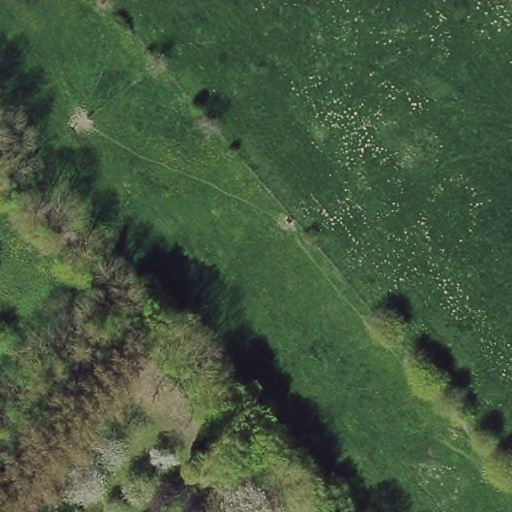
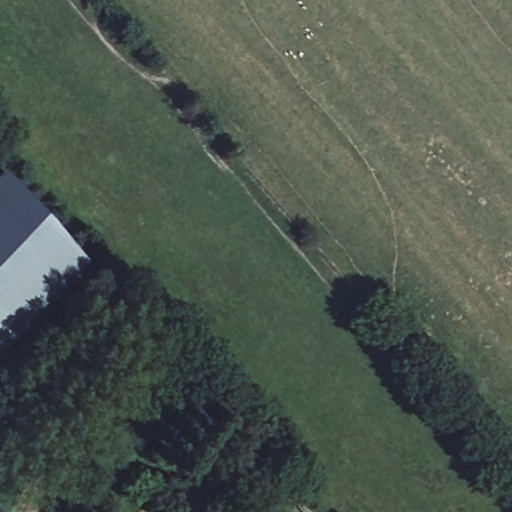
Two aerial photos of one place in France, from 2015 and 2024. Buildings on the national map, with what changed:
new [(45,218),(83,265),(0,353),(0,181),(2,178),(45,218)]

